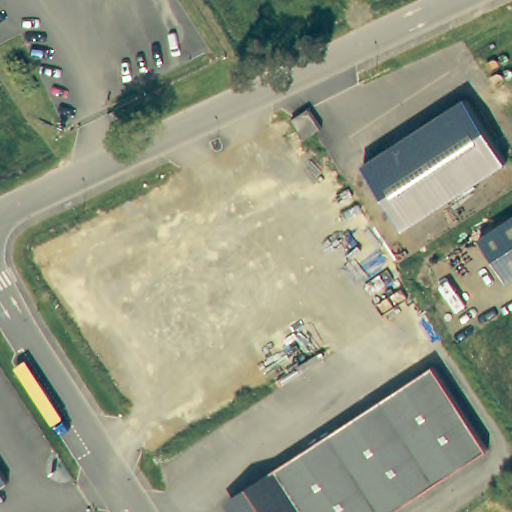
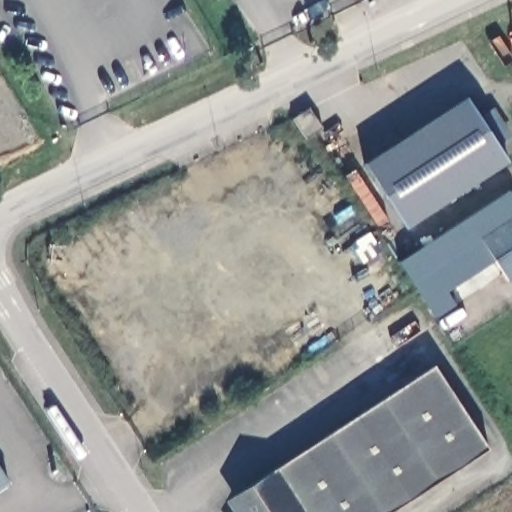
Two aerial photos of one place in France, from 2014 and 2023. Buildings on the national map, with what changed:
unchanged [(512,163),(512,164),(410,230),(369,167),(471,101),(512,163)]
unchanged [(294,126),(301,121),(310,116),(311,117),(324,136),(314,142),(306,147),(293,127),(294,126)]
new [(494,263),(448,292),(457,303),(434,318),(399,262),(510,192),(512,194),(512,219),(479,241),(494,263)]
unchanged [(512,278),(506,282),(479,241),(512,219),(512,278)]
unchanged [(228,496),(429,364),(485,446),(385,512),(239,512),(228,496)]
unchanged [(7,495),(0,500),(0,484),(7,495)]

